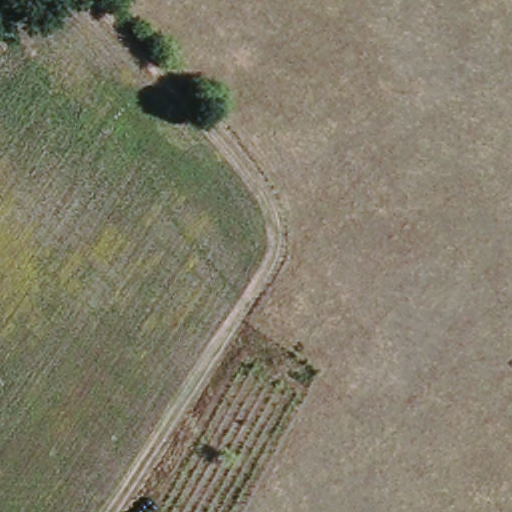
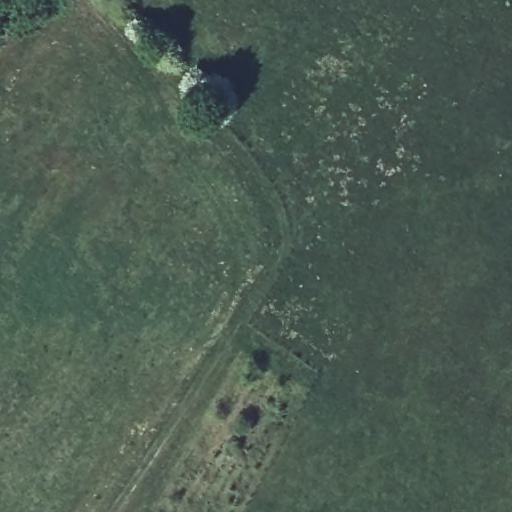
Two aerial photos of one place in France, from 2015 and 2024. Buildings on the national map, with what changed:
[]

